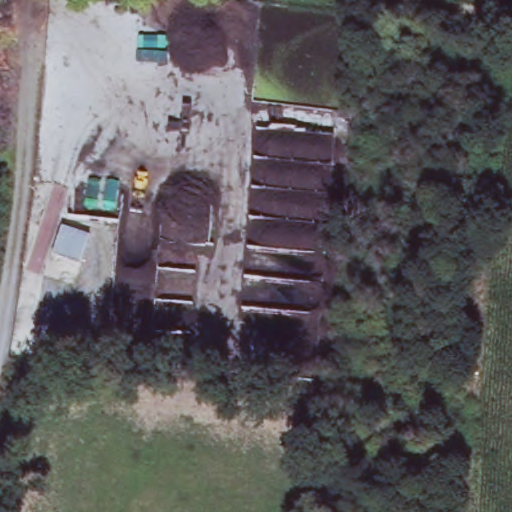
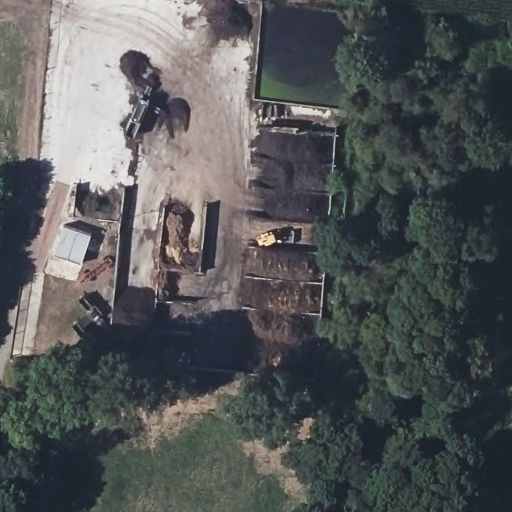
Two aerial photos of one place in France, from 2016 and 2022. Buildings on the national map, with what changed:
unchanged [(56,267),(67,236),(94,245),(85,275),(56,267)]

